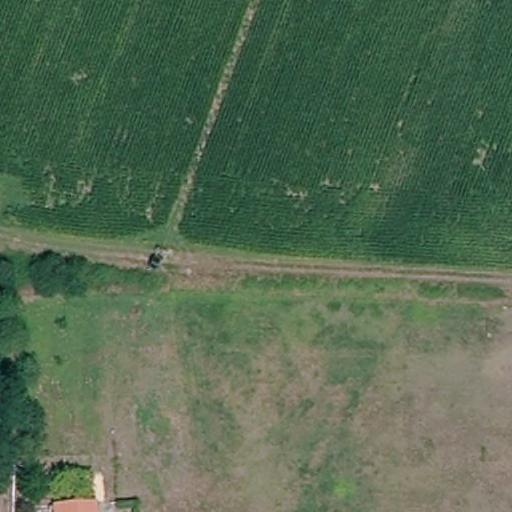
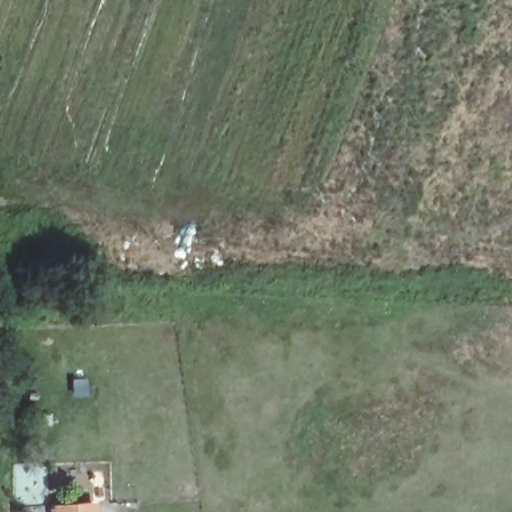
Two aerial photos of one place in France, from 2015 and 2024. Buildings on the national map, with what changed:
unchanged [(58,512),(57,502),(95,500),(96,512),(58,512)]

